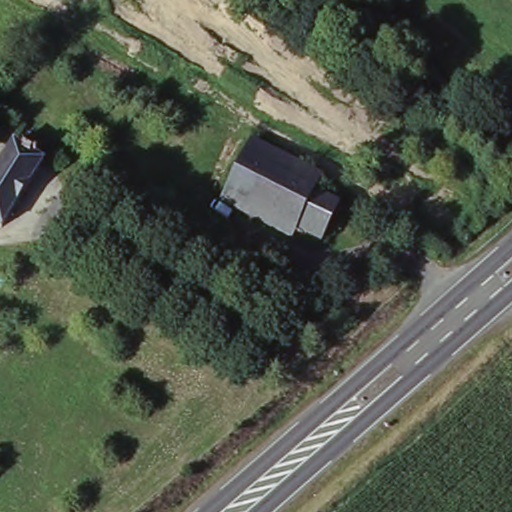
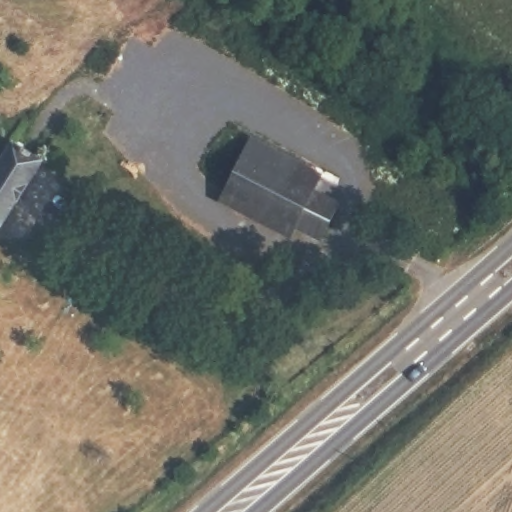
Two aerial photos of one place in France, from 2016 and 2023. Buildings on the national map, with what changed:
unchanged [(325,177),(320,185),(340,196),(310,241),(225,196),(258,142),(325,177)]
unchanged [(0,228),(0,166),(12,146),(45,164),(0,228)]

